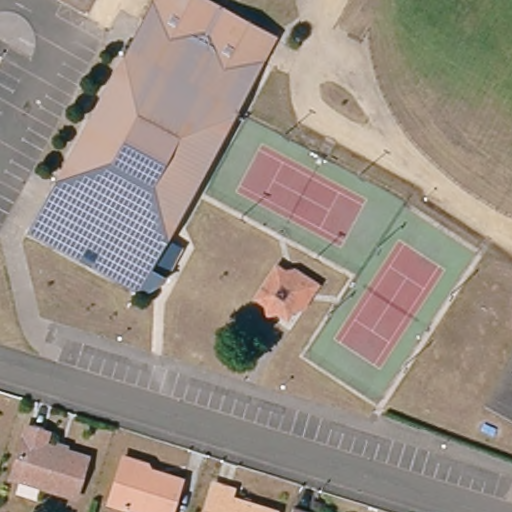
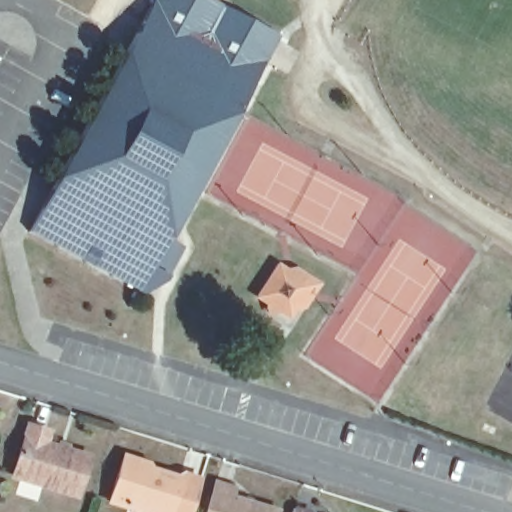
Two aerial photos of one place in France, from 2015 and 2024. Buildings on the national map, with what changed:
unchanged [(93,274),(23,236),(151,0),(194,0),(230,20),(272,43),(163,247),(178,254),(162,284),(146,277),(139,290),(135,297),(93,274)]
unchanged [(303,288),(283,317),(253,296),(273,267),(303,288)]
unchanged [(13,477),(29,427),(48,432),(44,444),(87,458),(76,496),(13,477)]
unchanged [(104,503),(118,459),(143,467),(142,471),(177,482),(168,512),(134,512),(104,503)]
unchanged [(277,512),(209,512),(218,485),(234,490),(232,497),(277,511),(277,512)]
unchanged [(293,509),(302,512),(293,512),(293,509)]

